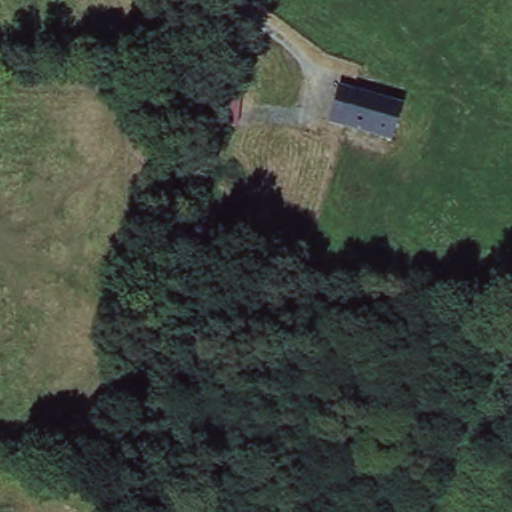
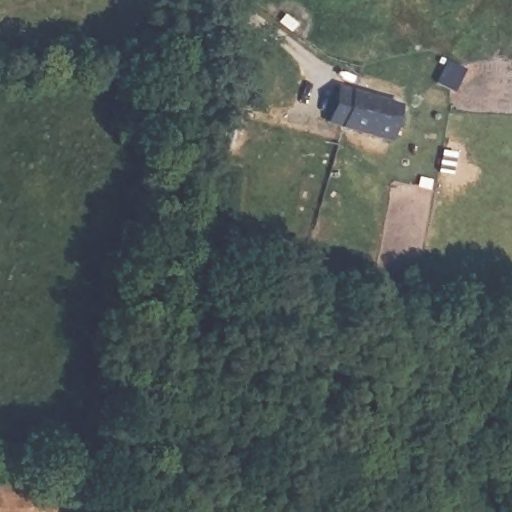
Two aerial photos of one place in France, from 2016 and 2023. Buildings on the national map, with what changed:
unchanged [(392,140),(327,121),(339,86),(401,105),(392,140)]

